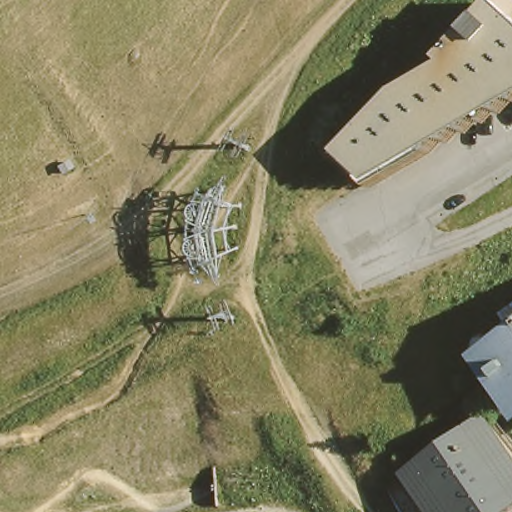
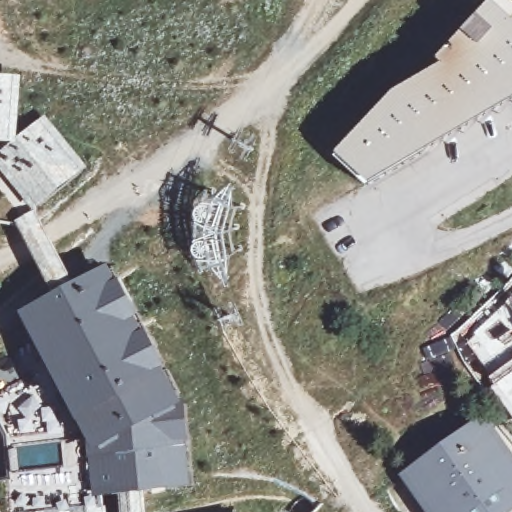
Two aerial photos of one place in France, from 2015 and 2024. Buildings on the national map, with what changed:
unchanged [(407,89),(452,60),(457,64),(511,0),(512,0),(512,107),(378,179),(350,148),(407,89)]
new [(22,77),(18,140),(45,117),(90,167),(36,211),(0,170),(0,155),(15,144),(0,143),(0,76),(22,77)]
new [(36,211),(77,283),(110,266),(168,371),(186,403),(195,488),(148,492),(150,512),(125,512),(124,495),(100,497),(99,449),(80,420),(21,315),(55,295),(16,222),(36,211)]
demolished [(512,333),(512,408),(473,362),(512,333)]
unchanged [(400,477),(488,412),(512,442),(512,512),(426,512),(400,477)]
unchanged [(426,512),(400,512),(382,488),(390,484),(400,477),(426,512)]

